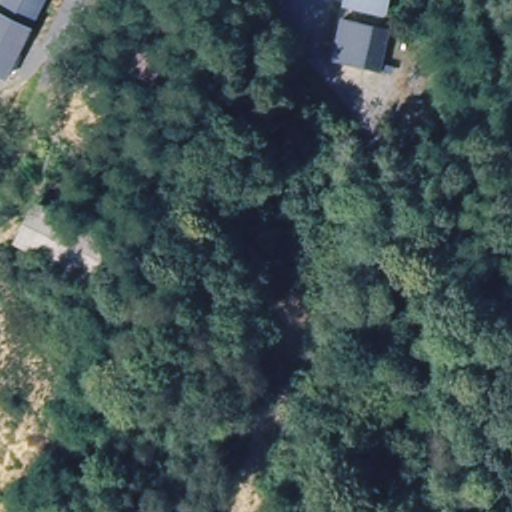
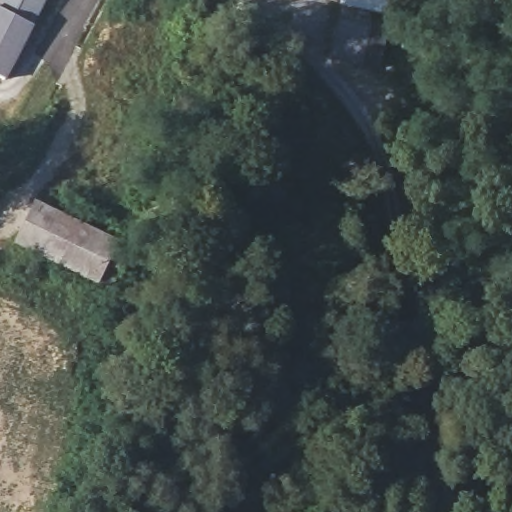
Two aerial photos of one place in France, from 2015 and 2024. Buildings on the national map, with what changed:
unchanged [(0,10),(0,4),(2,0),(47,0),(32,27),(0,10)]
unchanged [(167,27),(147,16),(155,0),(177,11),(167,27)]
unchanged [(350,6),(352,0),(392,0),(388,15),(350,6)]
unchanged [(6,77),(0,74),(0,10),(32,27),(6,77)]
unchanged [(384,31),(375,70),(328,59),(337,20),(384,31)]
unchanged [(152,83),(121,66),(140,28),(173,45),(152,83)]
unchanged [(105,299),(15,253),(45,197),(134,243),(105,299)]

